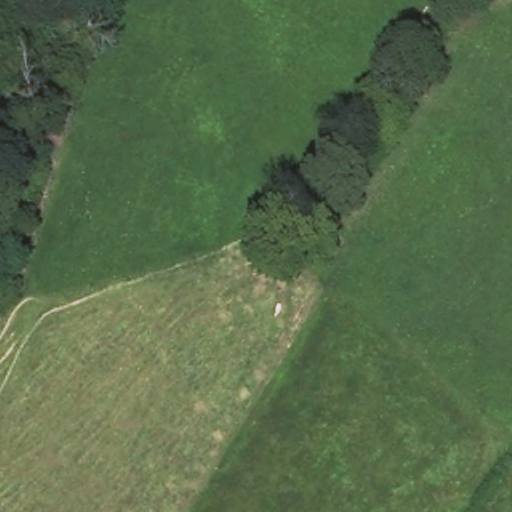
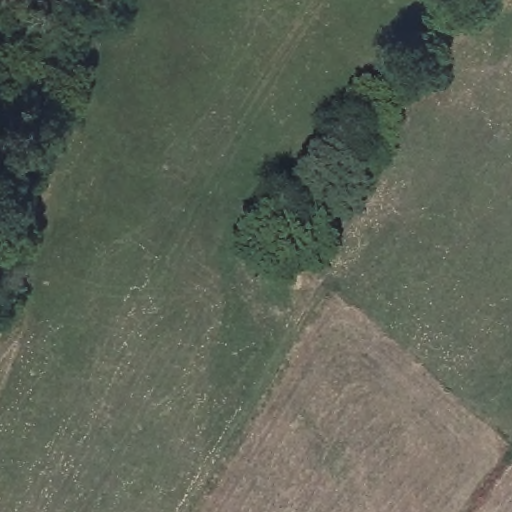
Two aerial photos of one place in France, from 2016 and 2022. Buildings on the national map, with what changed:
[]

